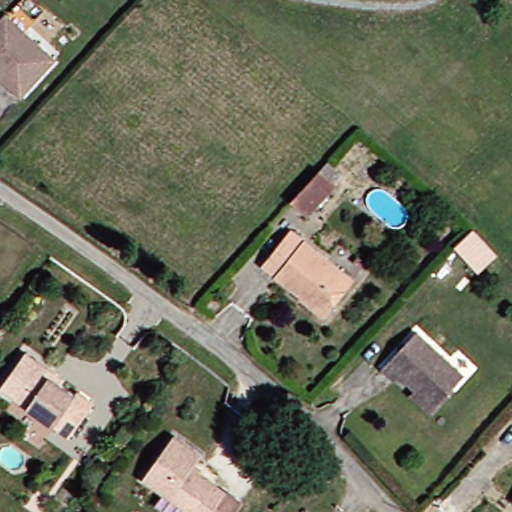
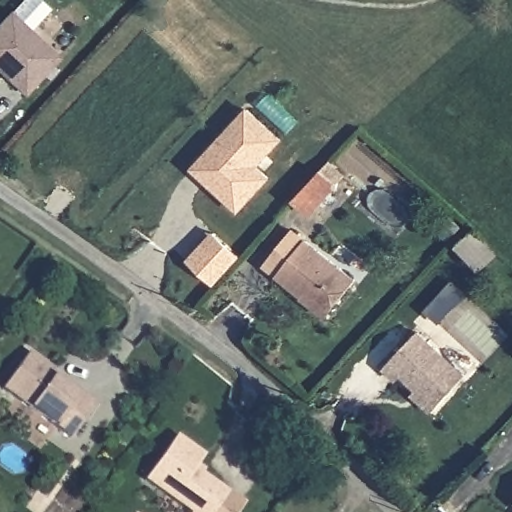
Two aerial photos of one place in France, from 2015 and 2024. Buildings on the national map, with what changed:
unchanged [(46,67),(12,104),(0,93),(0,25),(46,67)]
new [(259,165),(273,177),(239,212),(190,169),(248,106),(284,140),(259,165)]
unchanged [(290,202),(324,160),(342,177),(307,217),(290,202)]
unchanged [(320,316),(257,263),(285,229),(289,232),(349,280),(320,316)]
new [(215,285),(187,260),(213,231),(242,256),(215,285)]
unchanged [(408,396),(418,386),(402,371),(393,381),(379,367),(415,330),(460,371),(433,402),(424,412),(408,396)]
unchanged [(0,392),(0,386),(24,351),(59,378),(56,380),(73,393),(87,407),(65,440),(49,426),(24,408),(0,392)]
unchanged [(142,477),(176,435),(203,456),(193,469),(225,494),(240,506),(235,512),(186,512),(142,477)]

